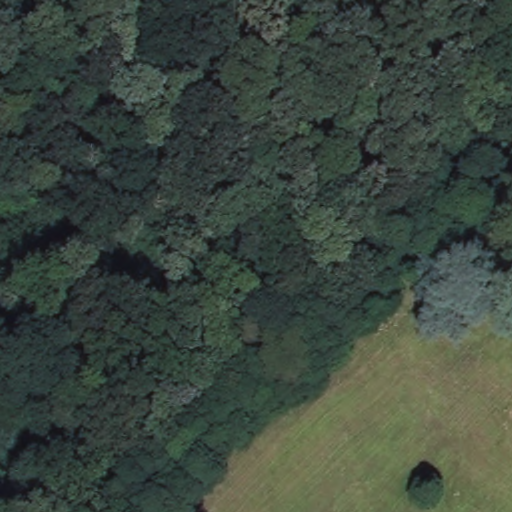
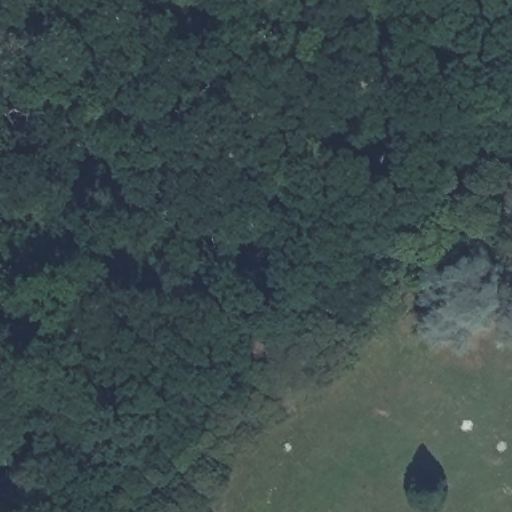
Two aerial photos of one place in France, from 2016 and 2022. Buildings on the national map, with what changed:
[]

